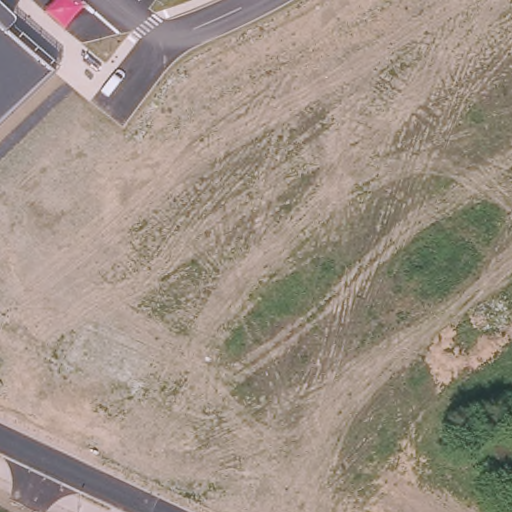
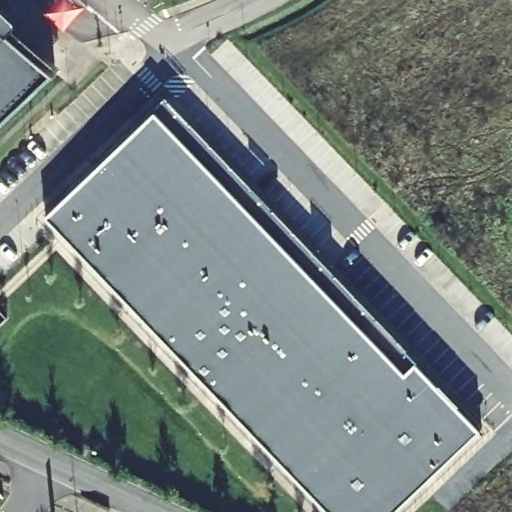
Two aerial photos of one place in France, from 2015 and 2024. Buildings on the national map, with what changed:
unchanged [(0,4),(16,19),(18,21),(17,25),(8,34),(54,72),(0,125),(0,4)]
new [(486,431),(399,512),(330,512),(43,217),(173,104),(486,431)]

